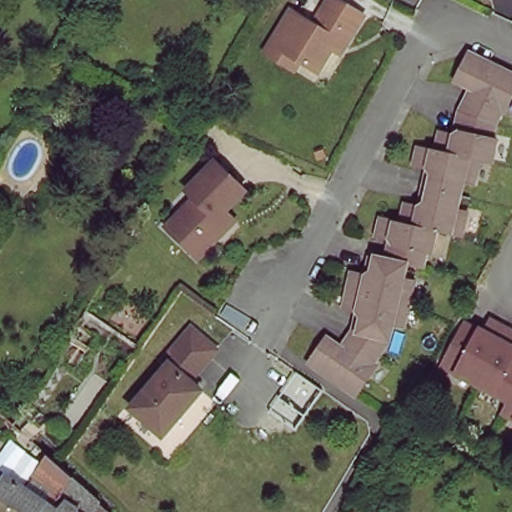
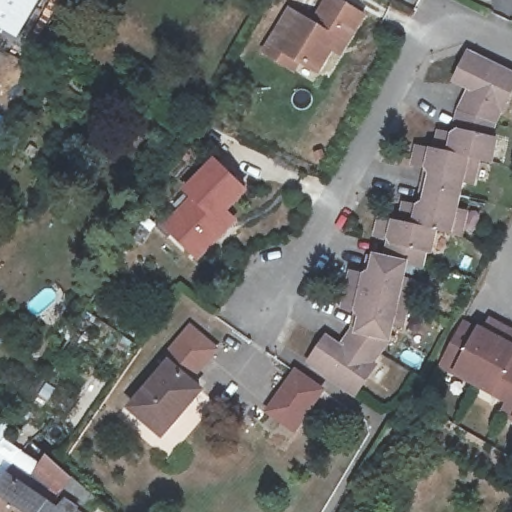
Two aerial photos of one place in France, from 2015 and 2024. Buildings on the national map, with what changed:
new [(16,57),(0,48),(0,0),(48,0),(16,57)]
unchanged [(274,57),(259,48),(285,6),(308,21),(321,0),(339,0),(359,12),(340,42),(334,52),(326,46),(311,68),(294,57),(288,66),(274,57)]
unchanged [(358,310),(343,307),(346,289),(351,271),(366,273),(371,255),(376,256),(386,258),(391,239),(376,236),(381,217),(401,221),(406,202),(419,205),(423,187),(428,167),(414,164),(418,146),(437,149),(441,131),(454,133),(459,111),(460,110),(471,87),(455,79),(469,52),(507,71),(512,73),(512,95),(505,109),(503,107),(496,122),(492,137),(497,138),(492,162),(479,160),(474,182),(464,181),(461,193),(458,208),(467,210),(462,235),(438,229),(432,253),(426,252),(423,266),(408,262),(404,277),(414,279),(409,302),(403,326),(393,324),(391,336),(383,347),(373,362),(376,364),(356,394),(307,361),(325,336),(341,347),(349,327),(358,310)]
unchanged [(173,240),(166,233),(179,218),(193,202),(186,195),(214,166),(244,195),(224,216),(230,221),(234,225),(226,234),(216,245),(199,262),(193,257),(173,240)]
unchanged [(469,384),(435,365),(457,326),(472,335),(478,332),(484,320),(500,328),(512,334),(512,342),(508,349),(510,354),(512,355),(512,422),(497,414),(503,402),(469,384)]
unchanged [(164,360),(189,327),(216,347),(191,379),(201,388),(166,434),(133,410),(168,363),(164,360)]
new [(289,373),(316,391),(299,417),(289,431),(263,413),(272,400),(289,373)]
unchanged [(48,503),(55,494),(30,475),(38,465),(19,447),(25,439),(46,457),(70,477),(94,499),(88,512),(35,512),(43,502),(48,503)]
unchanged [(43,502),(35,512),(0,512),(0,473),(0,472),(43,502)]

